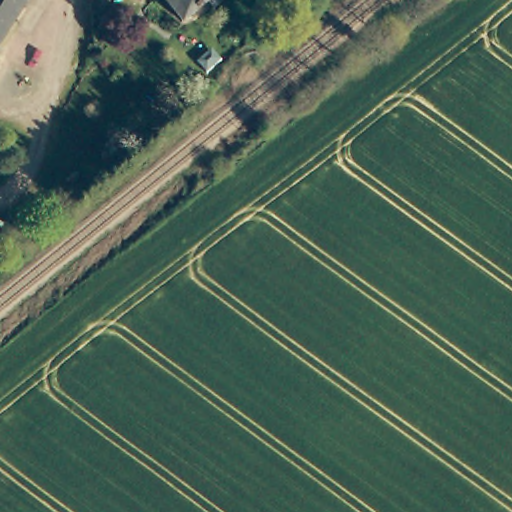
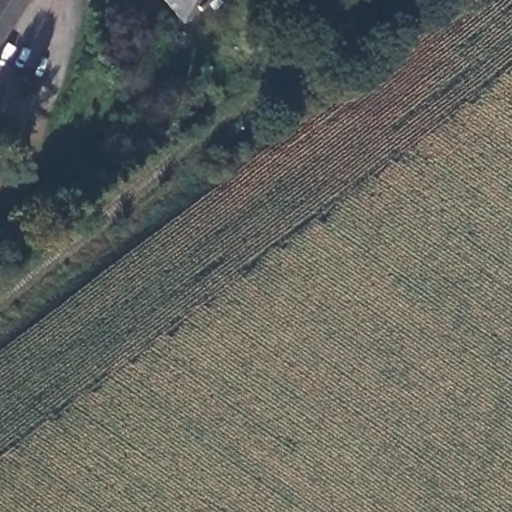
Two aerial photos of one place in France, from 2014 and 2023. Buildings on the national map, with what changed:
unchanged [(21,0),(0,34),(0,0),(21,0)]
unchanged [(202,0),(177,22),(160,0),(202,0)]

